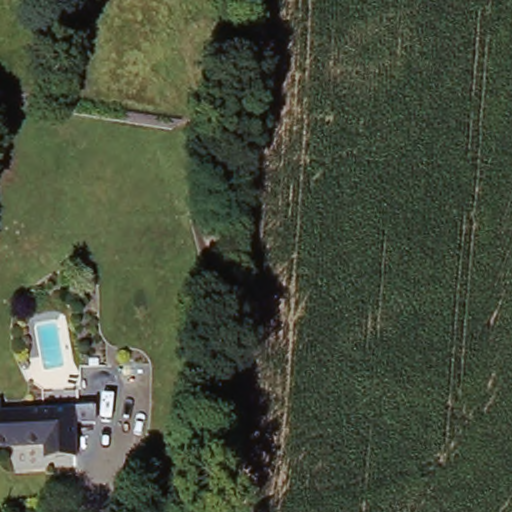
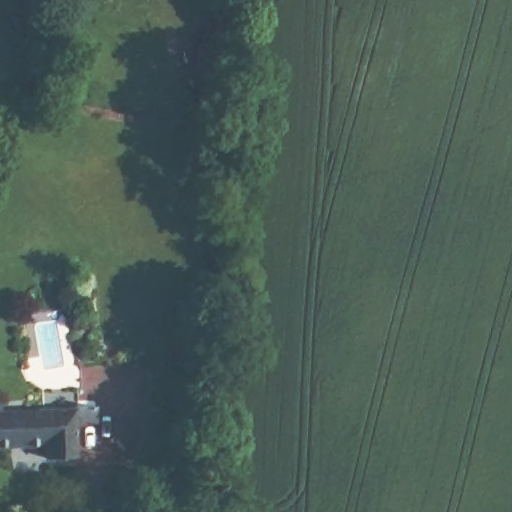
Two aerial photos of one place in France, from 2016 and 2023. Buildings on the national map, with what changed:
unchanged [(4,402),(6,410),(77,411),(80,406),(101,406),(100,420),(79,421),(78,456),(47,456),(48,446),(0,449),(0,402),(4,402)]

